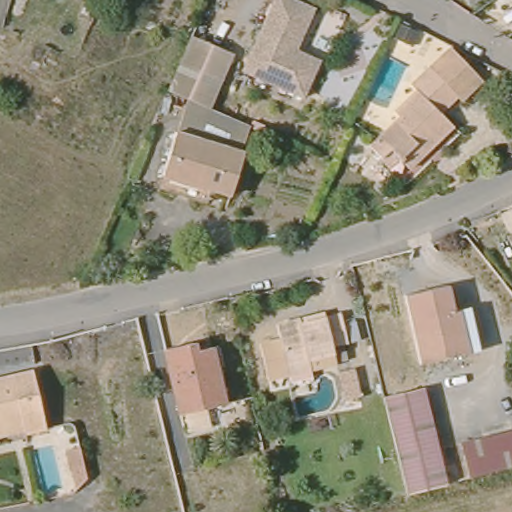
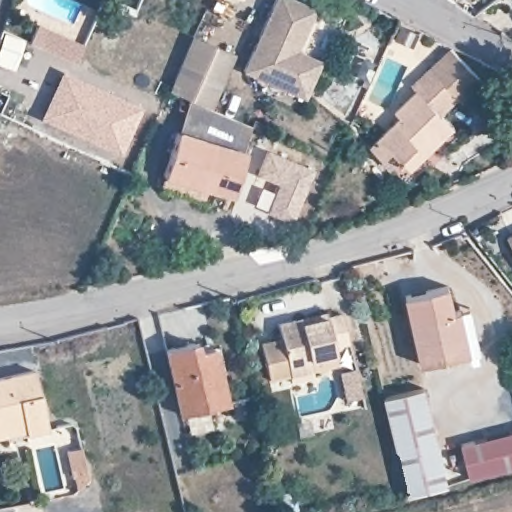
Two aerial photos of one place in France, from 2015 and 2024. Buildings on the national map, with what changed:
unchanged [(312,50),(324,57),(309,95),(246,68),(276,0),(303,0),(328,11),(312,50)]
new [(84,44),(75,63),(29,43),(38,23),(84,44)]
unchanged [(233,55),(212,100),(188,89),(170,81),(191,35),(233,55)]
unchanged [(483,81),(445,112),(455,124),(408,171),(390,154),(382,160),(368,148),(398,116),(393,112),(414,89),(408,84),(447,46),(483,81)]
new [(61,70),(141,104),(117,158),(109,154),(110,152),(39,118),(61,70)]
unchanged [(159,183),(164,169),(188,89),(212,100),(249,117),(226,190),(207,184),(204,196),(159,183)]
new [(313,169),(292,222),(266,211),(278,184),(256,175),(267,149),(313,169)]
unchanged [(480,346),(467,349),(424,359),(407,292),(442,283),(452,314),(457,312),(470,309),(480,346)]
unchanged [(293,374),(271,379),(260,339),(282,333),(279,319),(299,314),(301,320),(324,315),(342,311),(348,336),(328,341),(330,349),(311,353),(315,367),(293,374)]
unchanged [(175,414),(158,349),(187,341),(187,343),(196,341),(195,332),(201,330),(206,348),(219,404),(175,414)]
unchanged [(350,403),(343,373),(358,369),(365,400),(350,403)]
unchanged [(34,371),(44,429),(25,432),(0,436),(0,376),(34,371)]
unchanged [(412,493),(390,407),(409,402),(427,398),(449,483),(432,488),(412,493)]
demolished [(341,433),(334,403),(349,399),(355,430),(341,433)]
unchanged [(459,441),(512,427),(512,468),(467,480),(459,441)]

